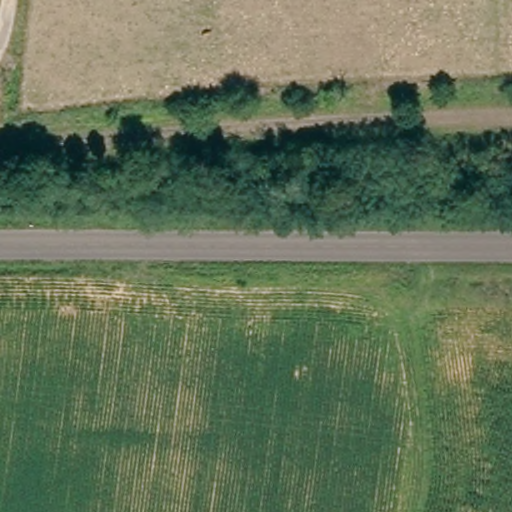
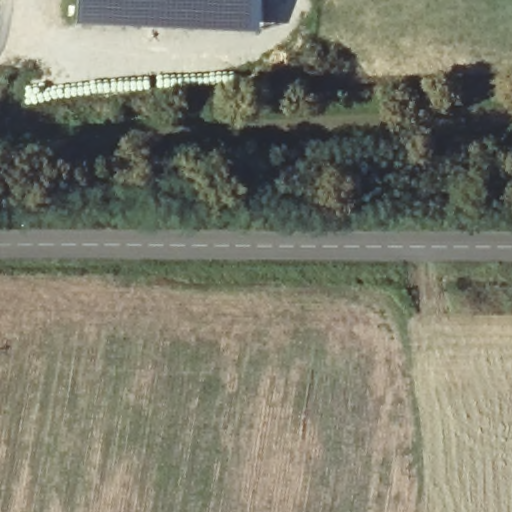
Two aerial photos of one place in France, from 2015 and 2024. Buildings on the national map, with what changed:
new [(262,0),(260,30),(165,24),(76,23),(77,0),(262,0)]

